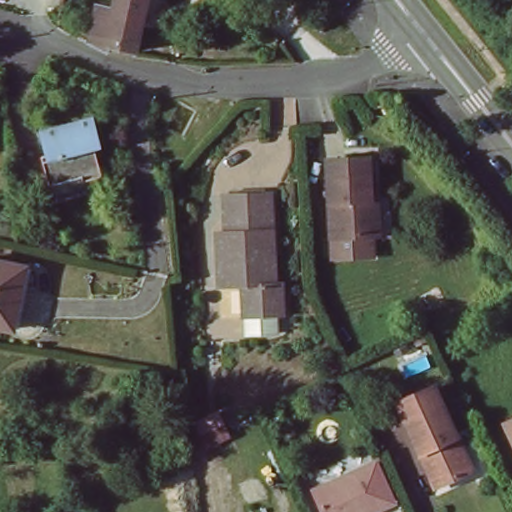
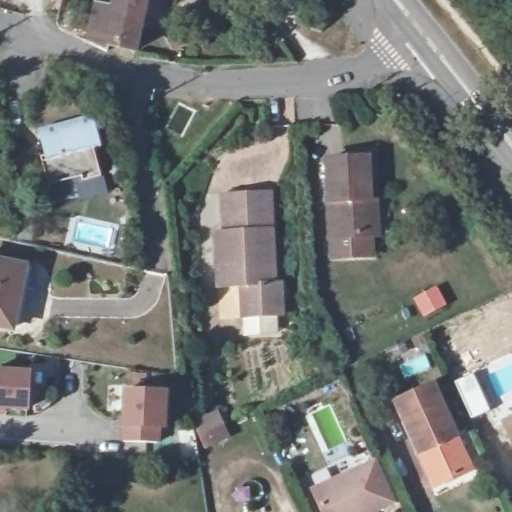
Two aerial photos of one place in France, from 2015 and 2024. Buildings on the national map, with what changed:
unchanged [(105,38),(103,46),(101,45),(86,36),(92,1),(112,6),(113,0),(142,0),(132,45),(105,38)]
unchanged [(107,150),(100,151),(103,180),(85,181),(87,190),(52,193),(47,146),(52,146),(50,124),(105,118),(107,150)]
unchanged [(332,263),(332,241),(330,163),(370,161),(373,239),(373,261),(332,263)]
unchanged [(275,230),(268,230),(270,284),(287,283),(287,314),(247,316),(245,284),(222,285),(220,232),(230,232),(228,194),(274,192),(275,230)]
unchanged [(10,327),(0,324),(0,262),(23,268),(10,327)]
new [(0,363),(30,364),(27,407),(4,405),(4,410),(0,410),(0,363)]
new [(125,389),(165,390),(163,441),(123,440),(125,389)]
unchanged [(411,446),(395,412),(432,396),(462,461),(430,475),(425,477),(411,446)]
unchanged [(512,424),(512,437),(507,426),(512,424)]
unchanged [(315,493),(375,465),(392,505),(376,512),(323,512),(315,493)]

